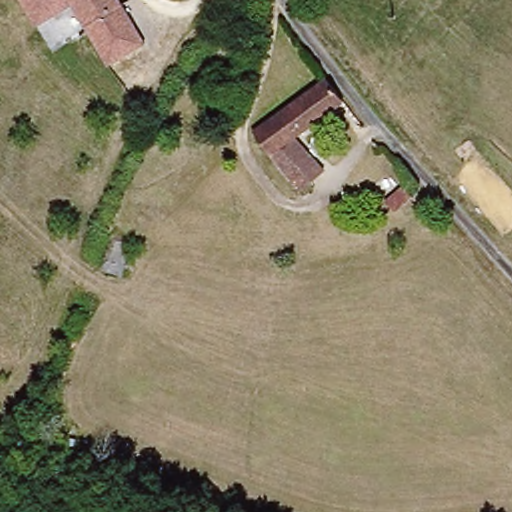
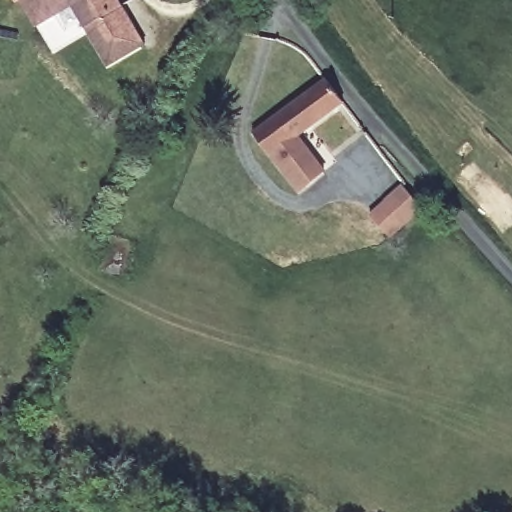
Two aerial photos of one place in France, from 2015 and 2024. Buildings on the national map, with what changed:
unchanged [(108,64),(68,5),(33,28),(14,0),(118,0),(144,40),(108,64)]
unchanged [(337,71),(355,95),(295,142),(324,175),(308,188),(260,133),(307,94),(337,71)]
new [(401,186),(422,209),(390,238),(369,215),(401,186)]

